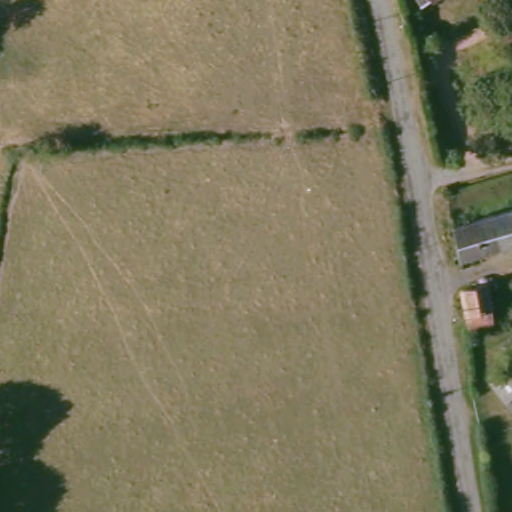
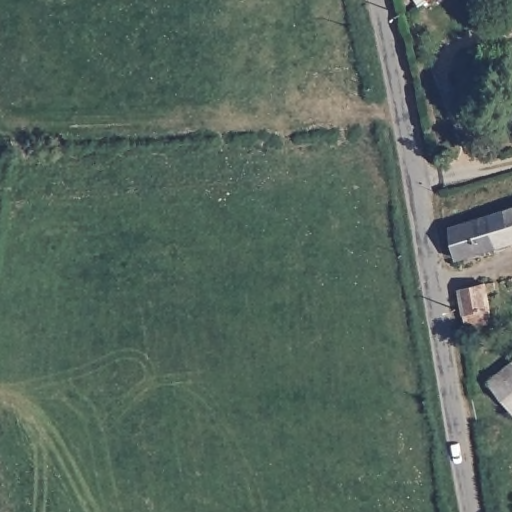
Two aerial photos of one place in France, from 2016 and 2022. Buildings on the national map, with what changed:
unchanged [(452,257),(447,226),(512,207),(512,240),(452,257)]
unchanged [(497,282),(498,288),(488,289),(493,319),(466,323),(461,287),(497,282)]
unchanged [(484,382),(512,359),(512,416),(484,382)]

